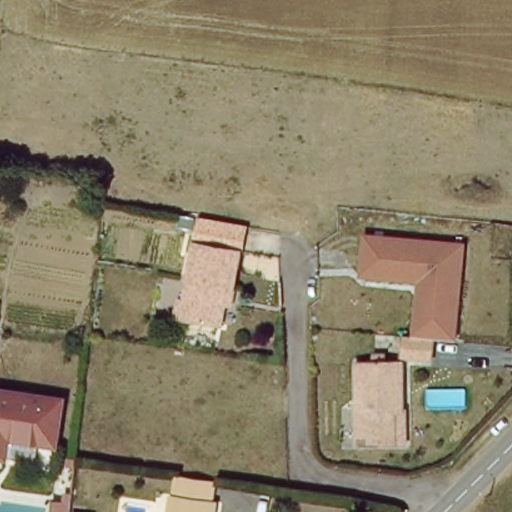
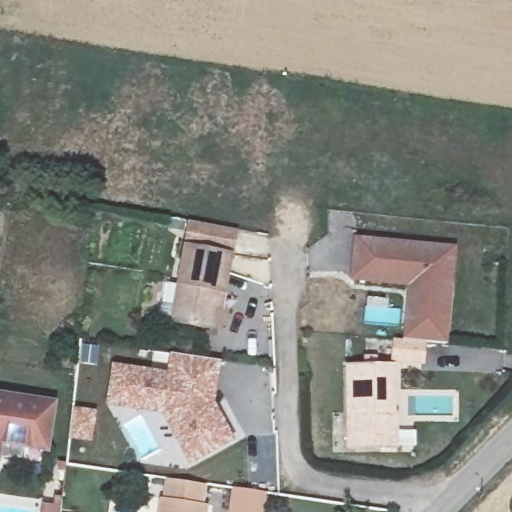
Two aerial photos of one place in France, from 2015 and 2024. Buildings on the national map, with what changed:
new [(241,231),(235,258),(226,257),(184,248),(189,221),(241,231)]
unchanged [(460,247),(450,341),(406,337),(410,283),(353,280),(356,237),(460,247)]
unchanged [(164,305),(170,306),(181,247),(226,257),(218,296),(215,311),(210,310),(205,331),(166,323),(160,322),(164,305)]
unchanged [(421,347),(420,367),(390,365),(391,345),(421,347)]
new [(192,465),(165,413),(109,406),(115,363),(167,372),(170,354),(222,361),(215,401),(237,440),(192,465)]
unchanged [(393,452),(383,452),(346,453),(345,372),(362,372),(361,363),(371,362),(372,372),(390,371),(390,421),(393,421),(393,452)]
unchanged [(43,398),(37,442),(0,436),(0,391),(43,398)]
new [(276,472),(270,512),(230,512),(233,487),(264,492),(267,471),(276,472)]
unchanged [(203,488),(199,508),(203,510),(203,512),(158,512),(164,480),(203,488)]
new [(55,495),(65,497),(63,512),(43,512),(43,503),(55,505),(55,495)]

